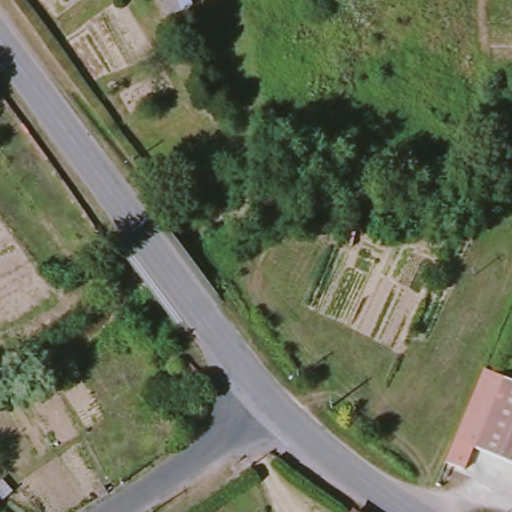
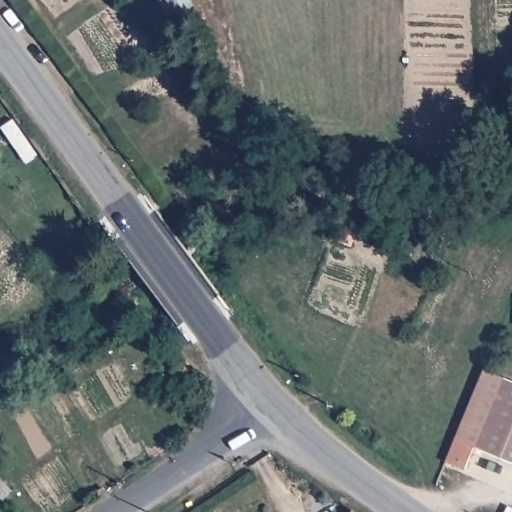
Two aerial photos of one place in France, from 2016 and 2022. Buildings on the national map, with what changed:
unchanged [(487,366),(506,375),(475,445),(466,466),(447,458),(454,444),(487,366)]
unchanged [(512,460),(475,445),(506,375),(512,377),(512,460)]

